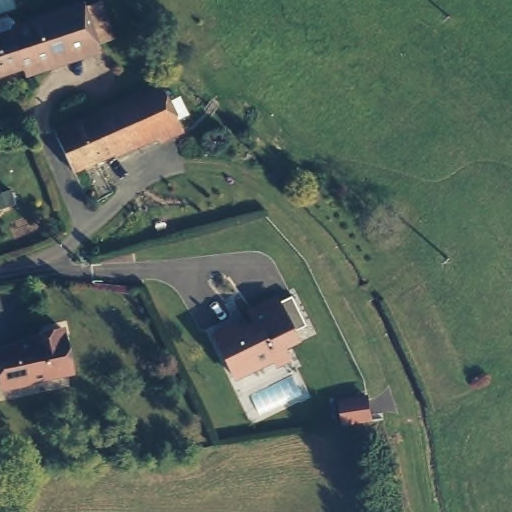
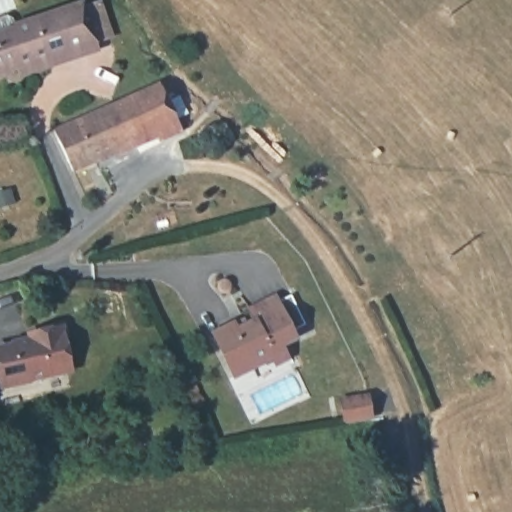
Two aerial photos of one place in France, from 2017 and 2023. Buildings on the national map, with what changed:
unchanged [(86,0),(99,35),(0,67),(0,26),(78,0),(86,0)]
unchanged [(167,75),(182,125),(75,160),(55,108),(167,75)]
unchanged [(24,212),(5,216),(3,202),(21,199),(24,212)]
unchanged [(288,344),(267,353),(270,361),(230,379),(210,335),(247,320),(243,313),(270,301),(288,344)]
unchanged [(0,346),(51,334),(59,373),(0,386),(0,346)]
unchanged [(367,419),(340,423),(337,397),(364,393),(367,419)]

